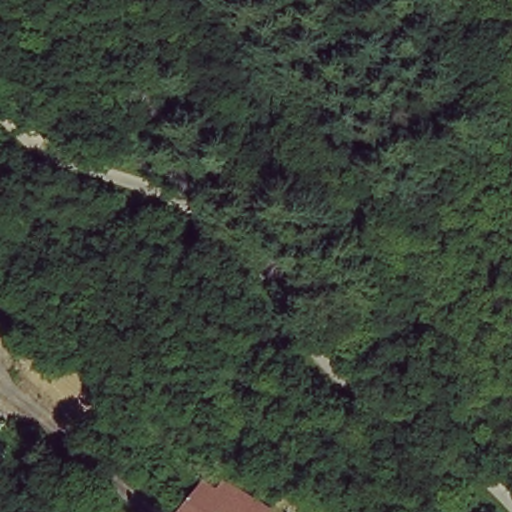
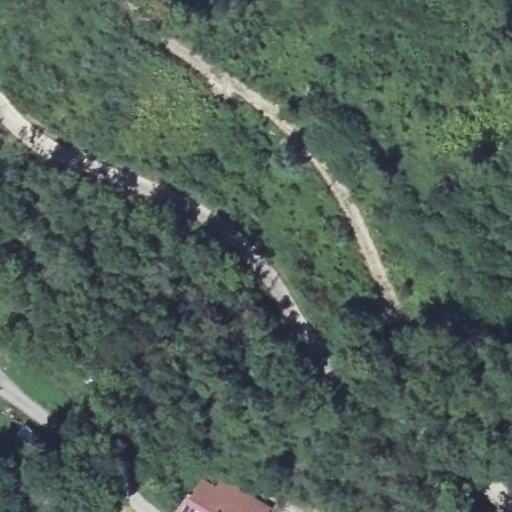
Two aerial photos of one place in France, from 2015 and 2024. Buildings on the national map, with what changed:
unchanged [(181,512),(202,480),(222,491),(230,480),(270,506),(266,512),(181,512)]
unchanged [(319,512),(306,512),(308,507),(319,512)]

